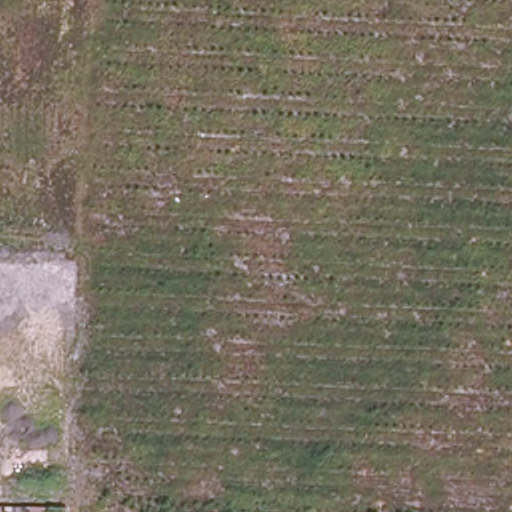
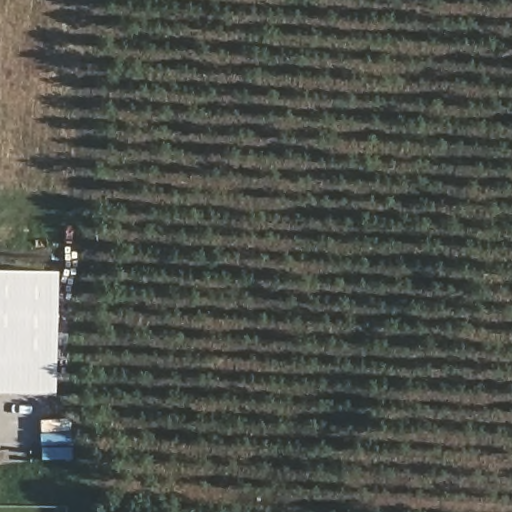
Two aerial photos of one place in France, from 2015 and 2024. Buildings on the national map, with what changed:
new [(0,392),(0,268),(58,269),(55,392),(0,392)]

